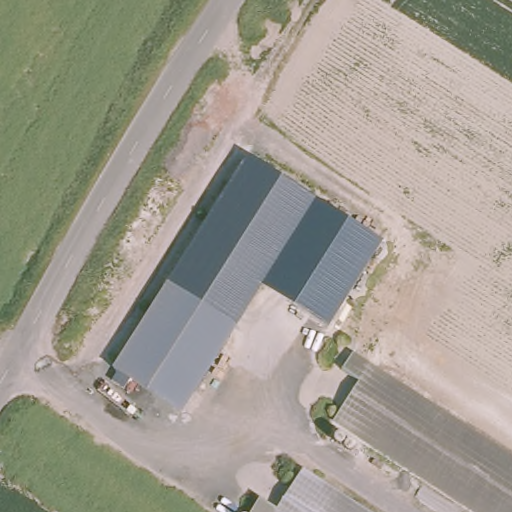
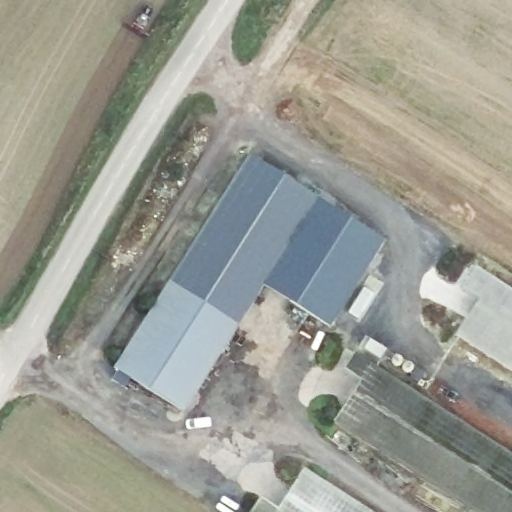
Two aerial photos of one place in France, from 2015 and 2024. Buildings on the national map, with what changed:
unchanged [(112,371),(244,157),(314,204),(179,414),(112,371)]
unchanged [(268,275),(314,204),(317,199),(383,241),(329,329),(262,286),(268,275)]
new [(474,297),(457,287),(470,267),(512,294),(512,371),(452,332),(474,297)]
unchanged [(512,446),(512,512),(497,512),(336,408),(358,372),(343,360),(355,345),(512,446)]
unchanged [(247,507),(259,490),(275,500),(298,467),(369,512),(255,512),(247,507)]

